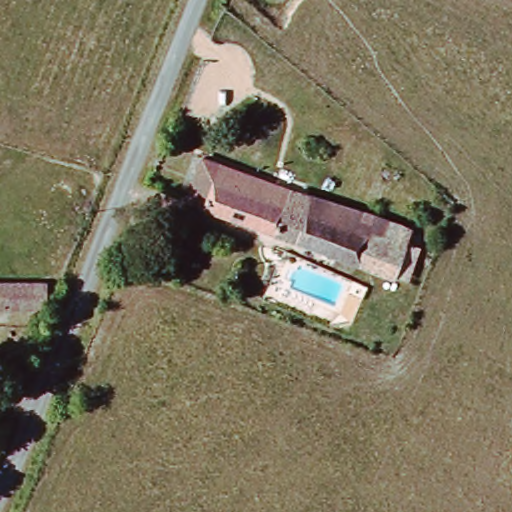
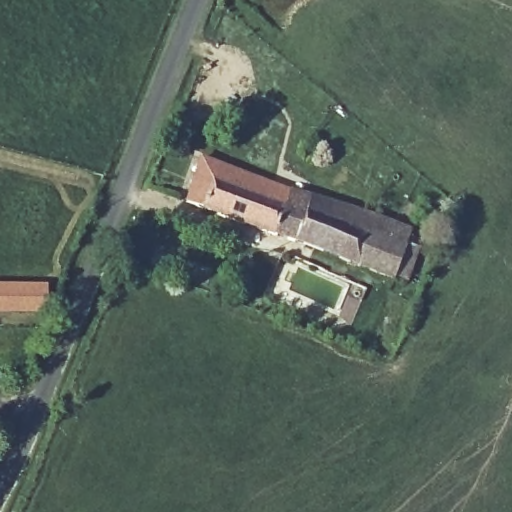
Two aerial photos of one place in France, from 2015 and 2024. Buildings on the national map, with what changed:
unchanged [(407,226),(389,280),(181,201),(196,155),(407,226)]
unchanged [(47,305),(0,309),(0,280),(47,275),(47,305)]

